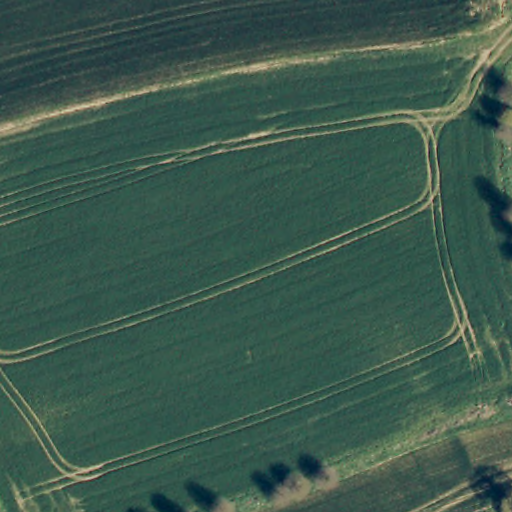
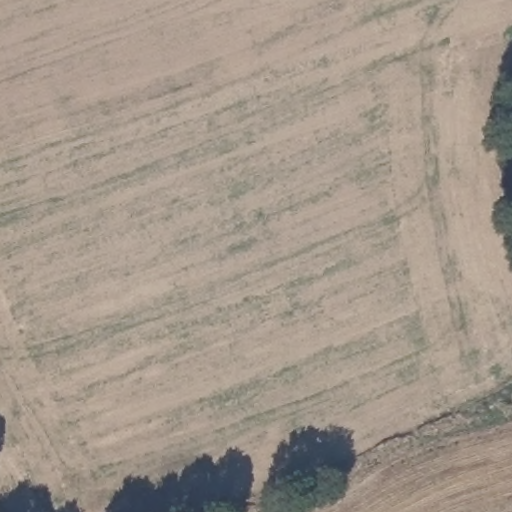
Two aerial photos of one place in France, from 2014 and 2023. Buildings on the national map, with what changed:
[]

